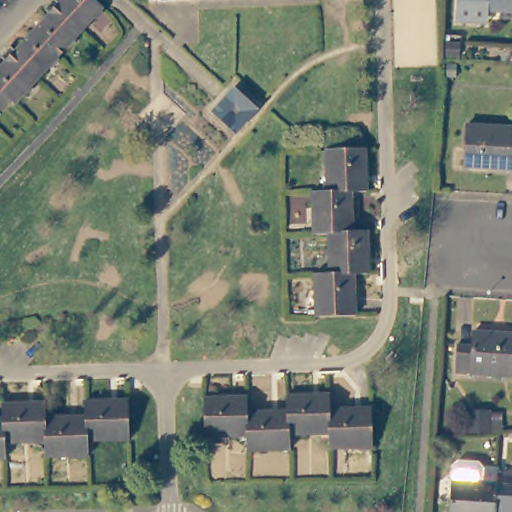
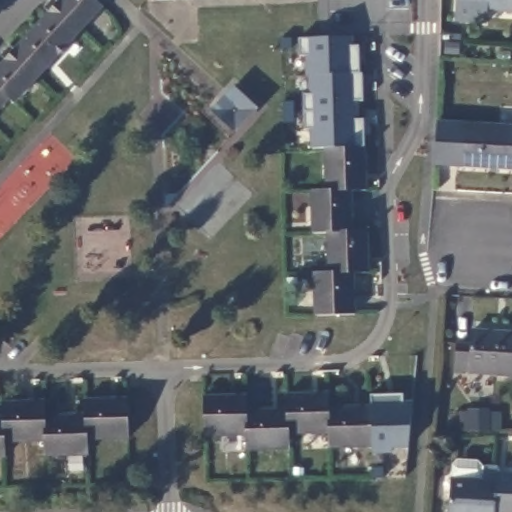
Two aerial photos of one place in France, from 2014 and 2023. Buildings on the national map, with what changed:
unchanged [(0,55),(4,51),(9,56),(44,19),(38,14),(48,3),(53,8),(60,0),(82,0),(96,13),(10,111),(3,106),(0,109),(0,55)]
unchanged [(151,0),(180,0),(151,1),(151,0)]
unchanged [(455,0),(512,0),(512,9),(484,7),(484,18),(453,17),(454,5),(455,0)]
new [(346,149),(325,150),(310,150),(309,129),(304,130),(304,95),(309,95),(309,76),(304,76),(304,56),(300,56),(300,40),(352,36),(352,46),(359,45),(360,74),(363,74),(364,102),(357,103),(357,120),(364,119),(364,147),(346,149)]
unchanged [(234,87),(257,106),(238,129),(215,110),(234,87)]
unchanged [(464,121),(512,124),(512,154),(507,154),(506,166),(462,164),(464,121)]
unchanged [(328,273),(328,234),(314,234),(312,190),(326,190),(325,150),(346,149),(364,147),(366,191),(352,192),(354,230),(368,230),(369,273),(354,274),(356,315),(335,316),(317,317),(314,274),(328,273)]
unchanged [(467,342),(468,328),(512,331),(512,373),(451,369),(453,341),(467,342)]
unchanged [(243,396),(244,411),(282,410),(282,395),(325,393),(325,408),(367,406),(368,446),(326,448),(325,433),(286,435),(287,450),(243,451),(242,436),(202,438),(200,398),(243,396)]
unchanged [(41,412),(81,410),(81,397),(124,395),(125,428),(125,435),(84,436),(84,450),(43,453),(41,438),(2,440),(3,455),(0,456),(0,400),(41,398),(41,412)]
unchanged [(446,487),(447,475),(477,475),(493,475),(493,482),(491,512),(445,512),(446,487)]
unchanged [(493,482),(512,483),(512,512),(491,512),(493,482)]

